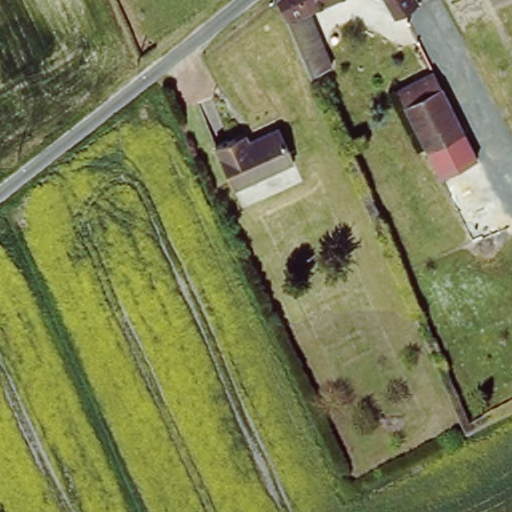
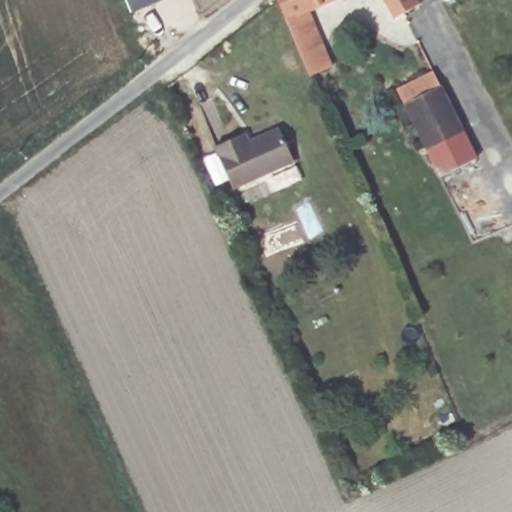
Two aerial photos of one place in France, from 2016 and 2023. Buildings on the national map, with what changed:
new [(126,0),(163,0),(132,14),(126,0)]
unchanged [(291,22),(281,0),(339,0),(312,12),(291,22)]
unchanged [(388,0),(422,0),(424,6),(398,17),(388,0)]
unchanged [(314,71),(291,22),(312,12),(336,68),(316,76),(314,71)]
unchanged [(425,151),(393,90),(430,71),(461,132),(425,151)]
unchanged [(293,164),(232,189),(215,149),(235,140),(245,136),(249,144),(279,131),(293,164)]
unchanged [(460,136),(469,159),(434,176),(422,153),(460,136)]

